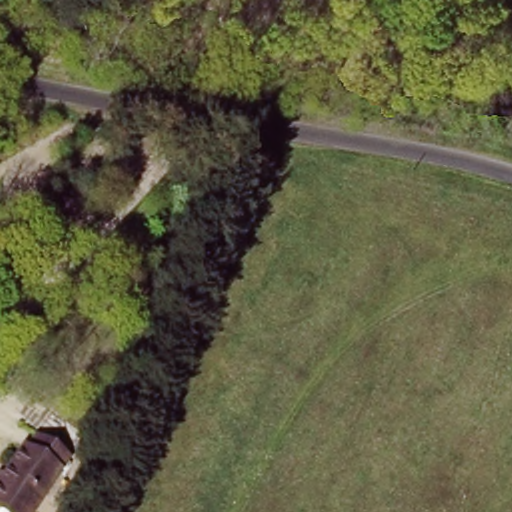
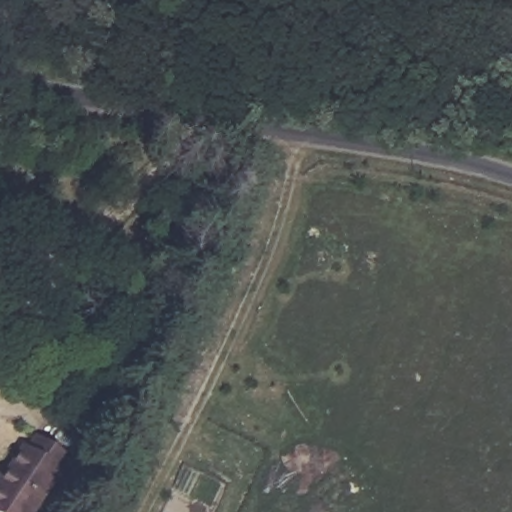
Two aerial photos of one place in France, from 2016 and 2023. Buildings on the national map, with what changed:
unchanged [(34,437),(69,462),(33,512),(0,512),(0,477),(3,480),(34,437)]

